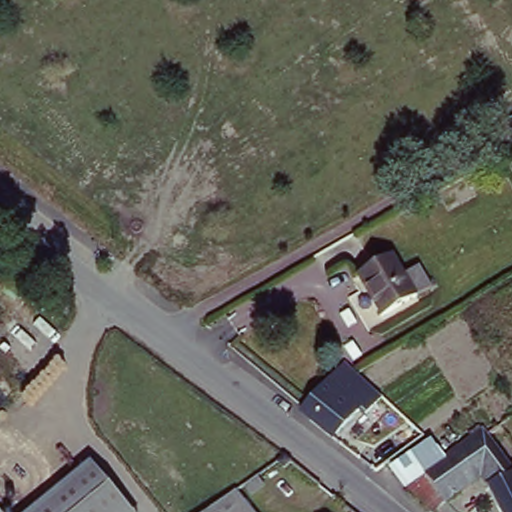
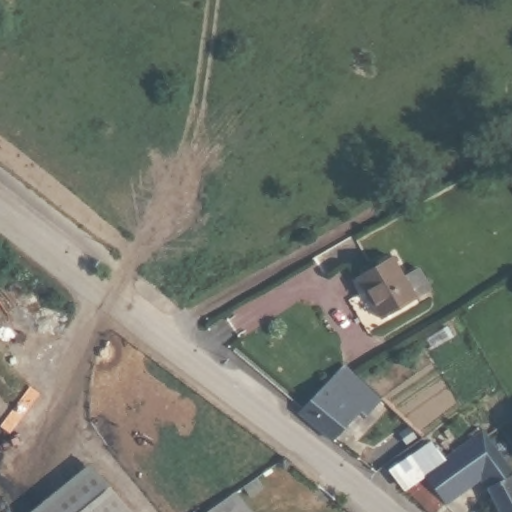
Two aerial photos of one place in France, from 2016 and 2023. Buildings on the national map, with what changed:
unchanged [(405,274),(418,268),(434,295),(369,336),(348,301),(364,289),(357,275),(392,255),(405,274)]
unchanged [(384,406),(337,453),(296,411),(345,362),(384,406)]
unchanged [(440,512),(422,512),(403,487),(391,471),(433,440),(442,458),(488,430),(512,468),(512,512),(490,512),(476,488),(440,512)]
unchanged [(129,512),(26,512),(88,463),(129,512)]
unchanged [(209,512),(237,492),(252,512),(209,512)]

